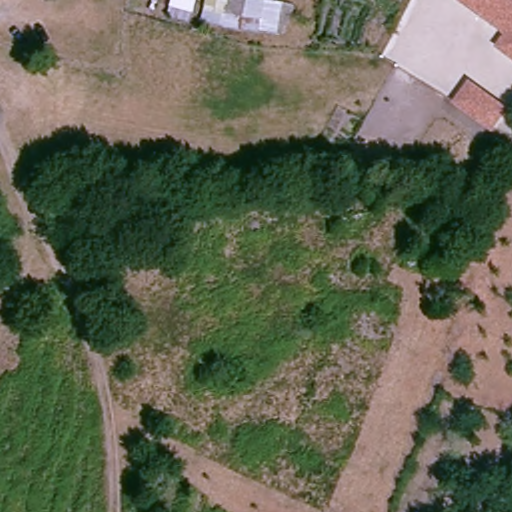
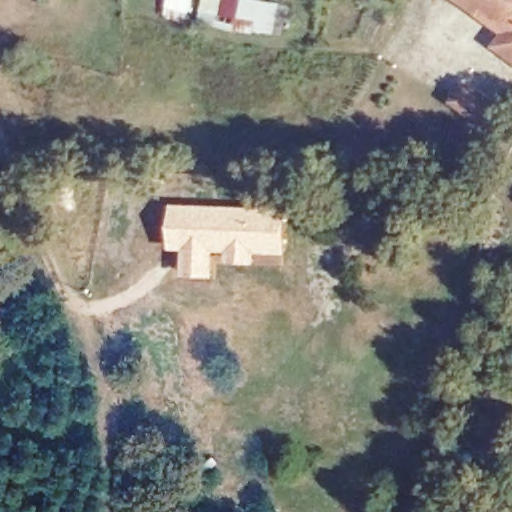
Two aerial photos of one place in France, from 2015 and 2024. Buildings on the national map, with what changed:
unchanged [(248,0),(290,10),(284,41),(200,25),(204,0),(248,0)]
unchanged [(505,38),(453,1),(454,0),(482,0),(512,22),(512,28),(505,38)]
unchanged [(482,0),(512,0),(512,22),(482,0)]
unchanged [(496,51),(505,38),(512,28),(512,63),(496,51)]
unchanged [(501,109),(488,127),(452,101),(466,84),(501,109)]
new [(172,204),(289,209),(287,255),(258,252),(257,264),(226,263),(227,256),(217,255),(215,279),(182,278),(183,251),(170,250),(172,204)]

